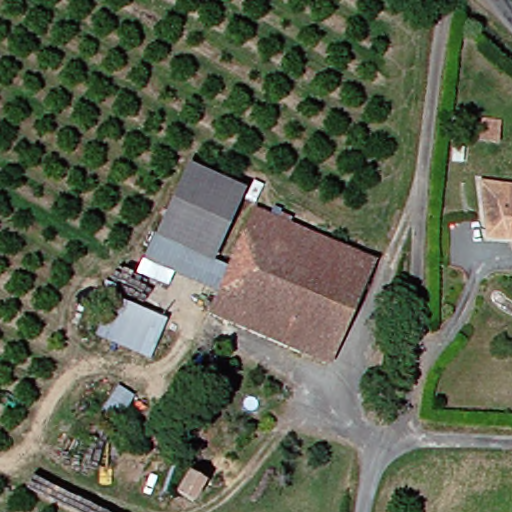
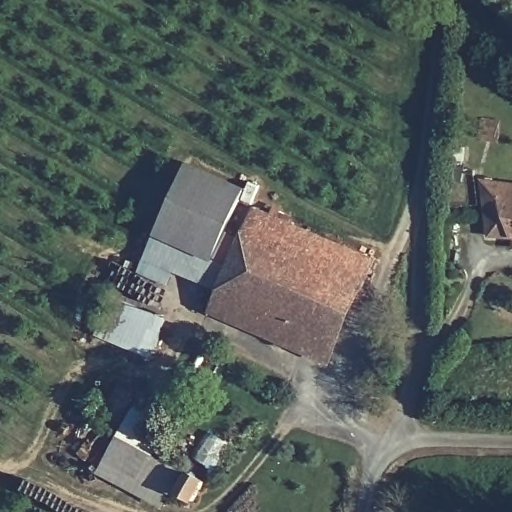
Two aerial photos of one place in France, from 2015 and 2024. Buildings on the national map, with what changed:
unchanged [(500,123),(498,141),(480,139),(482,120),(500,123)]
unchanged [(212,263),(160,232),(190,166),(246,190),(212,263)]
unchanged [(493,236),(488,184),(512,186),(512,237),(493,236)]
unchanged [(206,315),(263,204),(356,253),(303,363),(206,315)]
unchanged [(160,232),(212,263),(217,265),(207,287),(177,273),(169,288),(140,273),(160,232)]
unchanged [(356,253),(380,264),(324,374),(303,363),(356,253)]
unchanged [(116,295),(149,309),(148,310),(159,314),(172,319),(155,361),(99,338),(115,298),(116,295)]
new [(117,437),(134,409),(166,428),(152,457),(182,473),(162,510),(95,474),(117,437)]
unchanged [(197,474),(215,485),(200,505),(185,491),(197,474)]

